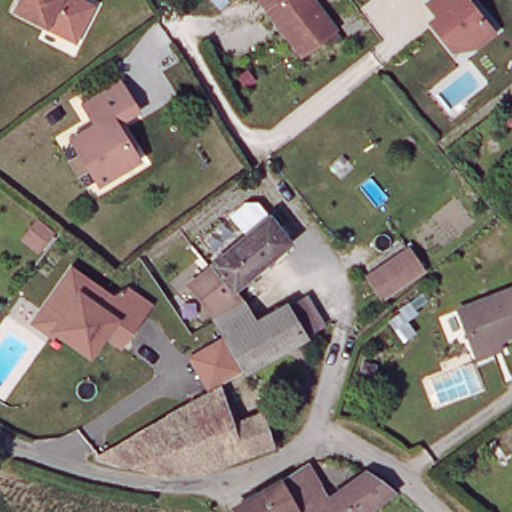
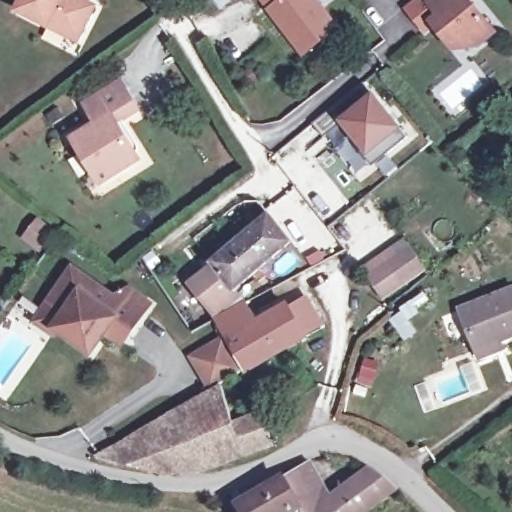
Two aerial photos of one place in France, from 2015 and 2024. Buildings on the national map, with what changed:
unchanged [(12,13),(18,0),(73,0),(89,8),(78,28),(71,43),(62,39),(12,13)]
unchanged [(303,56),(270,12),(271,12),(262,0),(314,0),(337,31),(303,56)]
unchanged [(468,0),(495,34),(479,47),(472,37),(455,51),(449,43),(433,24),(440,18),(430,6),(437,0),(468,0)]
unchanged [(100,187),(73,142),(97,127),(85,106),(122,83),(139,111),(117,125),(140,163),(100,187)]
new [(365,159),(349,139),(352,135),(343,124),(324,140),(313,126),(364,85),(408,140),(389,156),(373,169),(365,159)]
unchanged [(237,283),(225,292),(210,271),(221,262),(218,259),(237,244),(274,212),(275,212),(297,239),(259,271),(240,286),(237,283)]
unchanged [(24,237),(27,232),(38,218),(54,230),(43,244),(40,249),(24,237)]
unchanged [(426,269),(380,297),(366,273),(409,243),(426,269)]
unchanged [(116,297),(127,284),(155,306),(122,351),(105,340),(94,360),(55,333),(52,340),(30,322),(72,264),(116,297)]
unchanged [(477,350),(463,310),(512,291),(512,337),(501,341),(504,349),(480,358),(477,350)]
unchanged [(222,315),(250,299),(262,321),(292,302),(295,307),(313,296),(320,307),(330,323),(313,334),(252,367),(222,315)]
unchanged [(208,467),(162,468),(101,455),(229,382),(240,421),(269,411),(277,442),(208,467)]
unchanged [(305,465),(320,489),(311,495),(320,506),(365,473),(390,492),(363,512),(295,512),(294,511),(277,482),(305,465)]
unchanged [(292,512),(233,512),(232,510),(277,482),(294,511),(292,512)]

